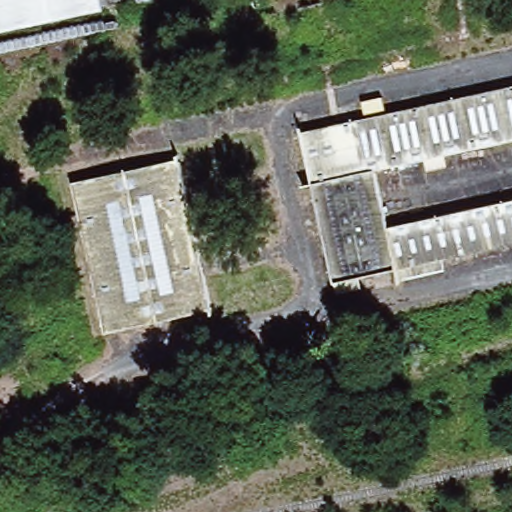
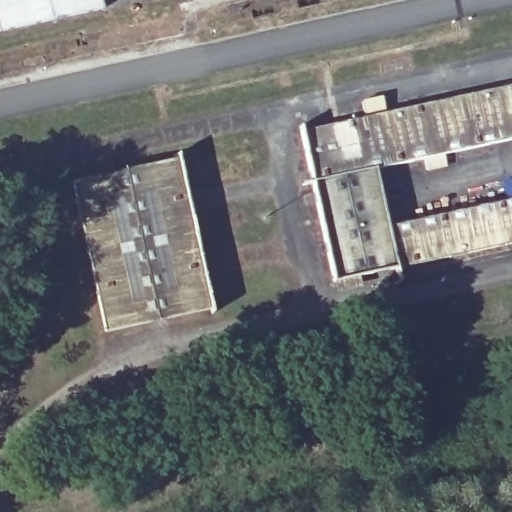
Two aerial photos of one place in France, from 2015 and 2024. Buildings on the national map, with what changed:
unchanged [(0,33),(0,0),(102,0),(104,10),(0,33)]
unchanged [(443,261),(445,270),(397,279),(395,268),(333,283),(300,131),(512,86),(512,142),(380,171),(391,226),(512,200),(512,246),(443,261)]
unchanged [(73,182),(178,160),(211,310),(108,333),(73,182)]

